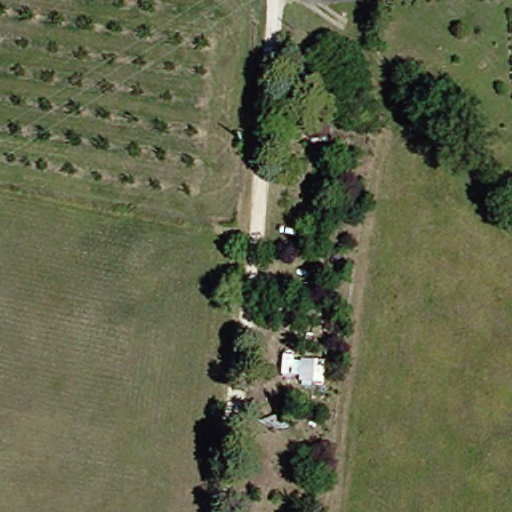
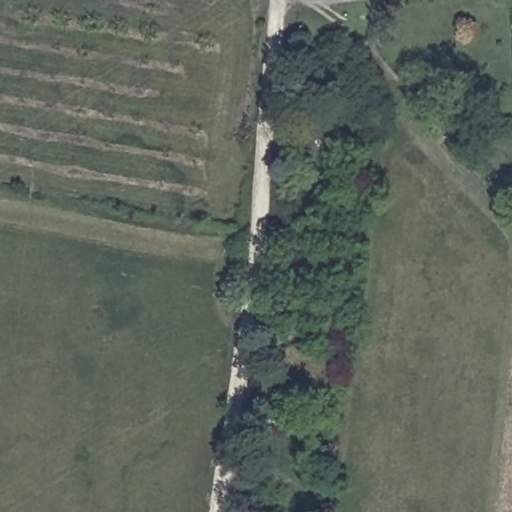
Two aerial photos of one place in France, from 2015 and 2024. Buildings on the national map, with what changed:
unchanged [(323,141),(303,140),(305,119),(325,120),(323,141)]

